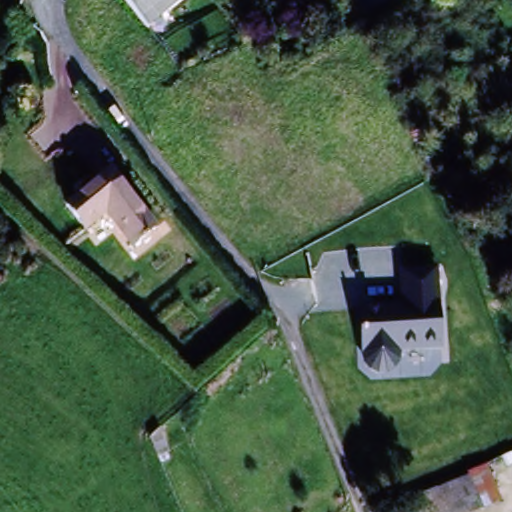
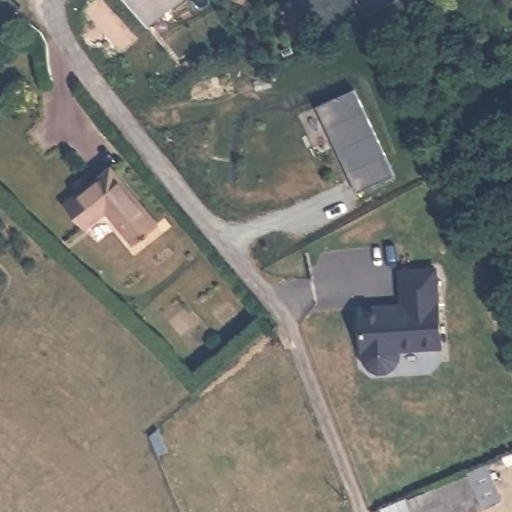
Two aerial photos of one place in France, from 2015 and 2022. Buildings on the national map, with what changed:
unchanged [(183,0),(152,24),(132,0),(183,0)]
new [(318,109),(356,93),(388,167),(350,184),(343,168),(341,162),(318,109)]
unchanged [(116,208),(95,224),(76,199),(120,165),(165,224),(141,242),(116,208)]
unchanged [(403,298),(402,267),(436,265),(441,347),(400,351),(400,361),(396,369),(387,374),(380,374),(371,370),(367,366),(363,361),(361,352),(361,299),(403,298)]
unchanged [(156,426),(167,450),(156,454),(147,434),(156,426)]
unchanged [(512,457),(512,470),(507,459),(512,457)]
unchanged [(483,512),(416,512),(412,502),(473,476),(472,474),(493,465),(507,500),(483,512)]

